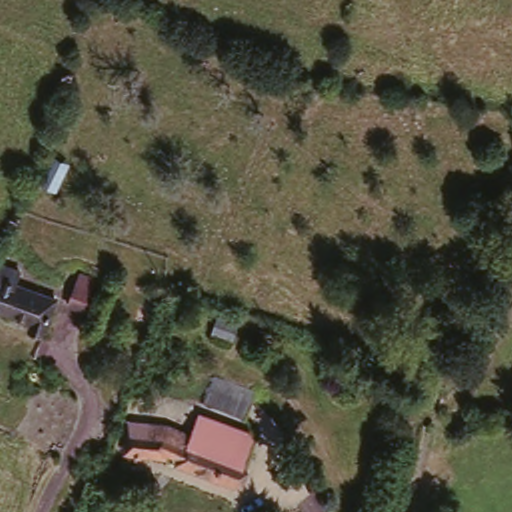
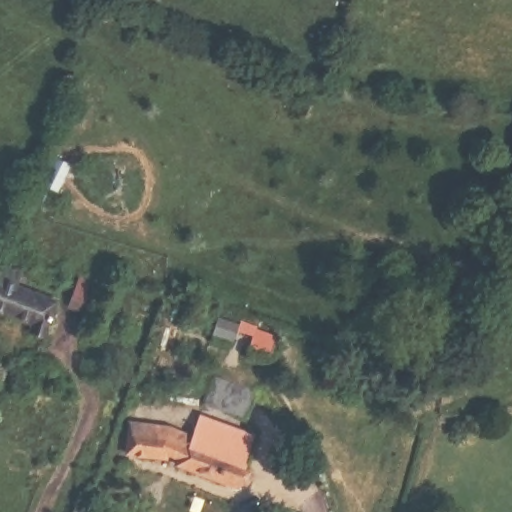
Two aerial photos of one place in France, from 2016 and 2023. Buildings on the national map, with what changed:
unchanged [(48,159),(41,178),(28,175),(36,155),(48,159)]
unchanged [(90,270),(78,302),(61,296),(73,265),(90,270)]
unchanged [(11,294),(53,307),(42,340),(14,333),(18,325),(0,319),(0,272),(16,277),(11,294)]
unchanged [(218,322),(214,337),(197,331),(202,317),(218,322)]
unchanged [(244,393),(236,416),(205,407),(213,383),(244,393)]
unchanged [(253,445),(234,497),(163,471),(168,452),(161,450),(159,457),(118,461),(115,459),(112,439),(133,437),(134,432),(158,431),(185,440),(193,423),(253,445)]

